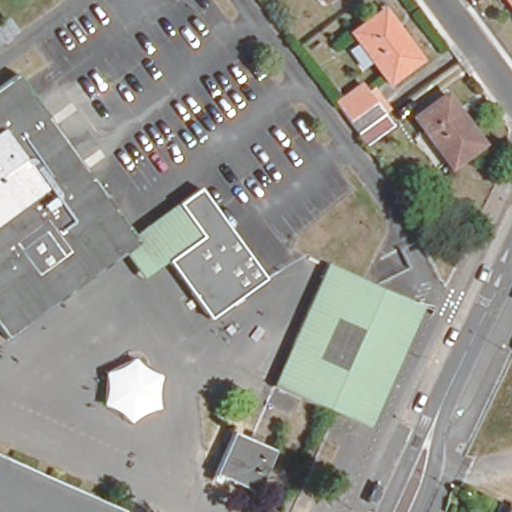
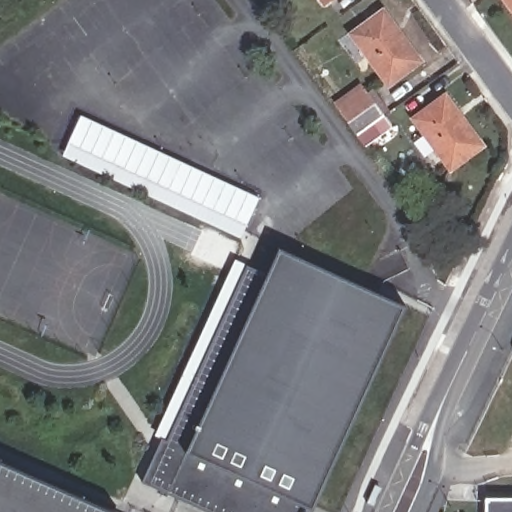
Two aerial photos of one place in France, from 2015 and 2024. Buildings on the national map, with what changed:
unchanged [(326,6),(321,0),(333,0),(326,6)]
unchanged [(503,0),(512,0),(512,12),(503,0)]
unchanged [(385,12),(423,64),(391,87),(352,35),(385,12)]
demolished [(19,34),(0,47),(0,25),(9,19),(19,34)]
demolished [(46,224),(16,246),(36,276),(24,285),(0,303),(0,89),(18,76),(51,120),(50,121),(86,173),(89,172),(121,217),(69,254),(46,224)]
unchanged [(368,153),(358,138),(337,110),(364,92),(368,98),(375,93),(391,116),(385,120),(395,134),(368,153)]
unchanged [(448,96),(486,148),(453,172),(414,119),(448,96)]
new [(62,156),(81,115),(259,198),(241,238),(62,156)]
demolished [(201,190),(267,280),(210,322),(166,264),(142,282),(124,257),(140,245),(135,237),(201,190)]
new [(268,278),(281,252),(402,307),(407,308),(312,512),(214,512),(149,482),(247,269),(268,278)]
demolished [(277,452),(258,494),(217,476),(235,434),(277,452)]
unchanged [(0,512),(0,464),(108,512),(0,512)]
new [(512,497),(512,512),(484,512),(484,497),(512,497)]
demolished [(512,508),(512,512),(505,512),(508,506),(512,508)]

